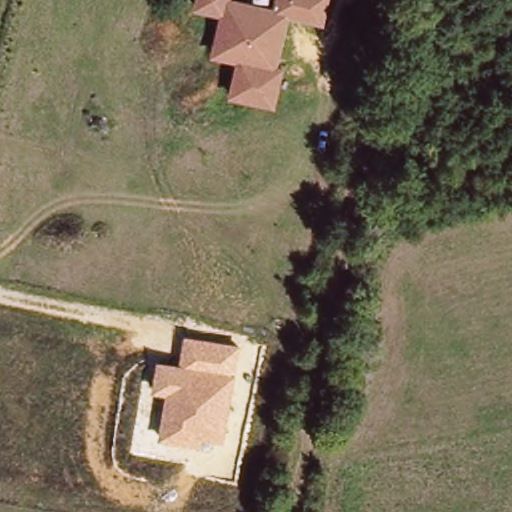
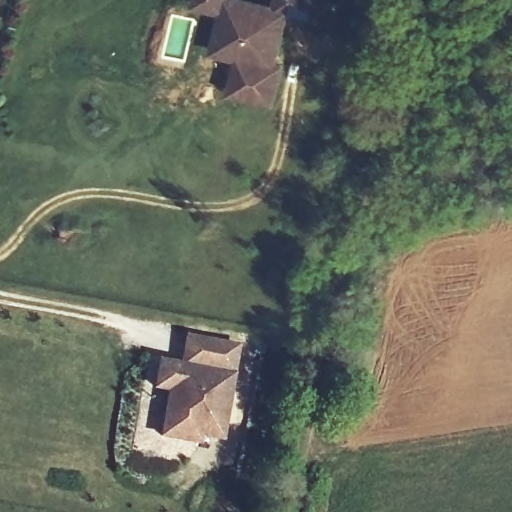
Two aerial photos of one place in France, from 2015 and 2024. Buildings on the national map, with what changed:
unchanged [(250,0),(276,6),(278,0),(327,0),(321,20),(291,12),(280,57),(278,62),(281,64),(274,98),(233,88),(242,53),(215,45),(226,7),(198,1),(198,0),(250,0)]
unchanged [(240,342),(223,441),(205,438),(205,443),(159,435),(166,391),(152,389),(157,358),(180,362),(184,334),(240,342)]

